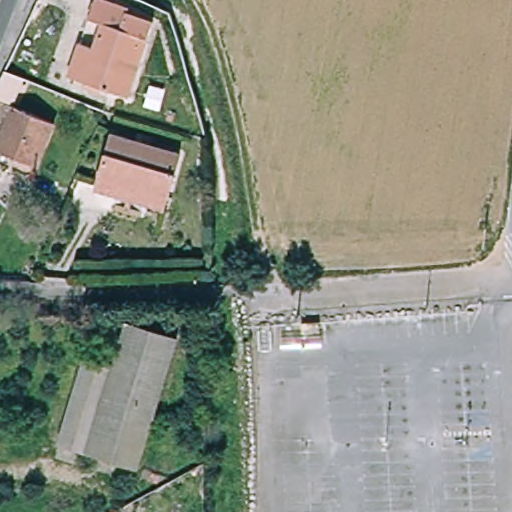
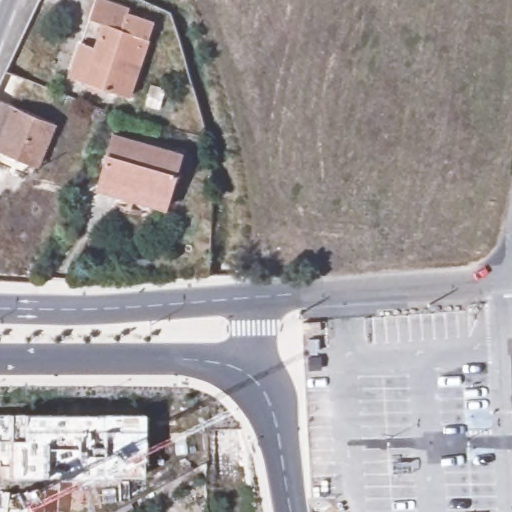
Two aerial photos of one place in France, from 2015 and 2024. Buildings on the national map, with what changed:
unchanged [(80,44),(91,48),(99,29),(87,24),(95,0),(103,0),(128,9),(126,14),(153,24),(125,98),(81,82),(68,77),(80,44)]
unchanged [(35,164),(25,160),(0,149),(0,101),(53,122),(35,164)]
unchanged [(180,163),(167,204),(101,184),(113,143),(180,163)]
demolished [(54,445),(80,358),(109,367),(123,321),(177,338),(136,470),(54,445)]
new [(138,475),(5,477),(5,467),(0,468),(0,414),(140,412),(138,475)]

